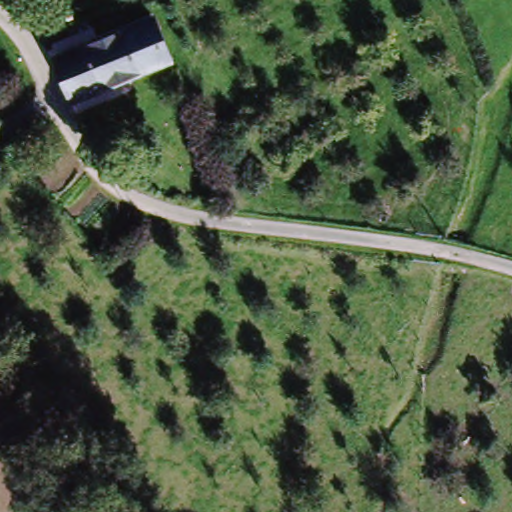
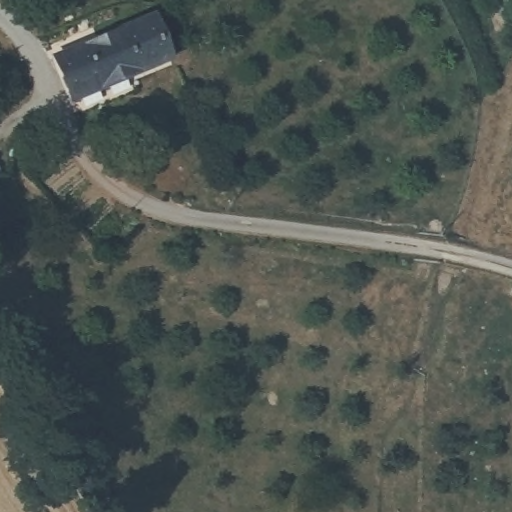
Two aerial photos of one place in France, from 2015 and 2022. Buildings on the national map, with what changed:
unchanged [(112,38),(149,23),(165,67),(67,106),(49,64),(52,63),(112,38)]

